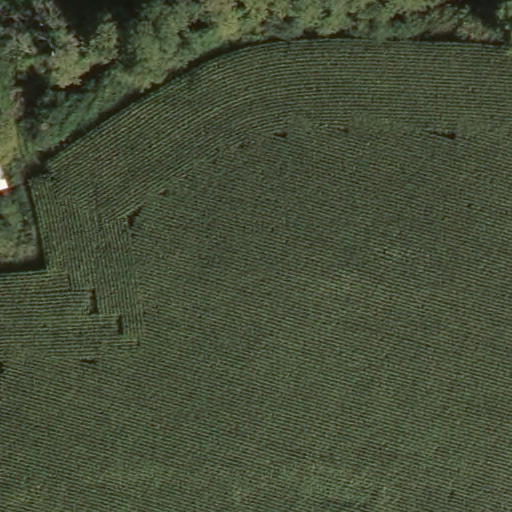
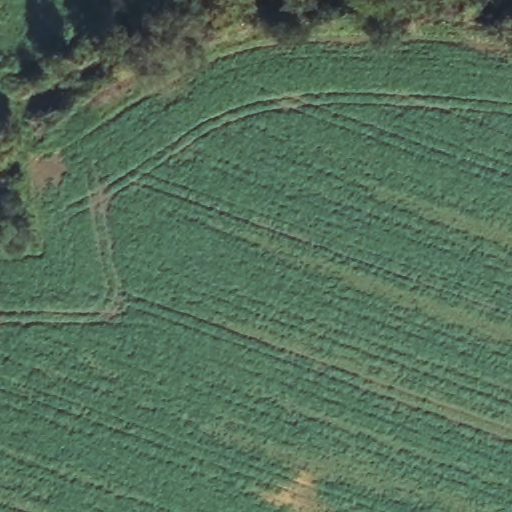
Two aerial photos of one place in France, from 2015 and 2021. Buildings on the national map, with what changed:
unchanged [(7,155),(16,180),(0,186),(0,158),(7,155)]

